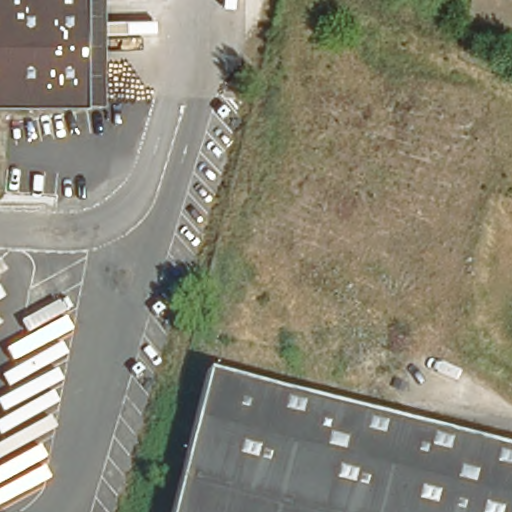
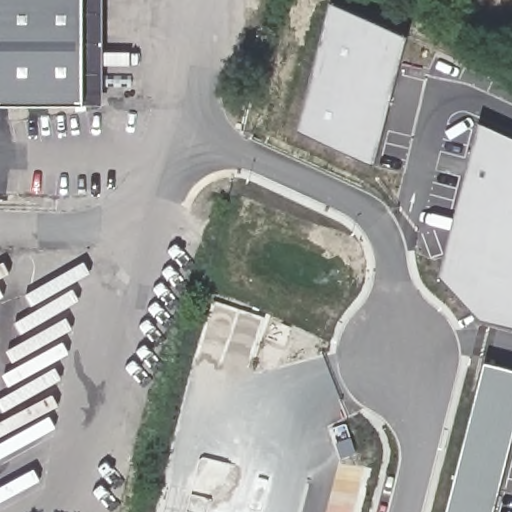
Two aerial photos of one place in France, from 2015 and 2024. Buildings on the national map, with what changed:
unchanged [(0,102),(0,0),(77,0),(78,103),(0,102)]
new [(374,163),(300,131),(332,4),(405,38),(374,163)]
new [(440,277),(480,122),(512,137),(512,326),(481,318),(440,277)]
new [(512,439),(494,512),(451,512),(489,361),(512,366),(512,439)]
demolished [(206,369),(512,446),(512,512),(170,512),(206,369)]

